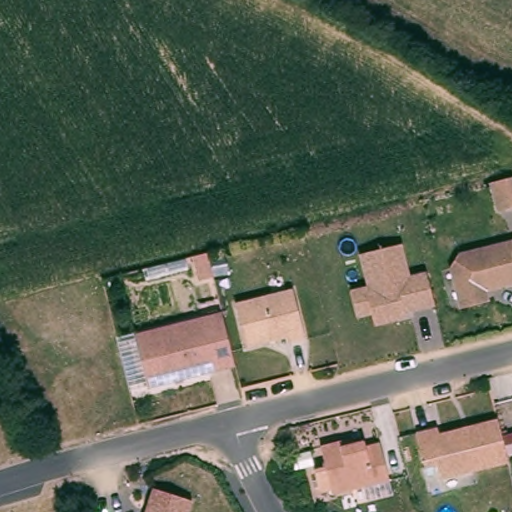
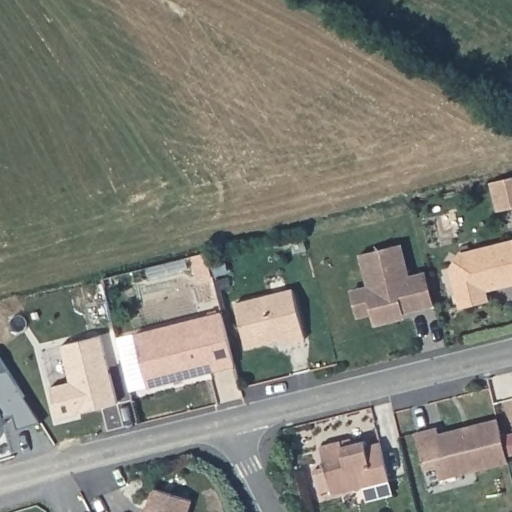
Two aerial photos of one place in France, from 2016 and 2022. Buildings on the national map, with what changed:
unchanged [(493,181),(496,181),(512,177),(512,208),(503,210),(496,211),(489,183),(493,181)]
unchanged [(369,314),(357,318),(349,289),(366,285),(358,252),(402,242),(409,274),(426,271),(435,305),(404,312),(405,316),(372,326),(369,314)]
unchanged [(454,287),(449,268),(456,255),(512,242),(512,284),(483,291),(485,300),(459,307),(454,287)]
unchanged [(212,277),(197,280),(191,257),(206,253),(212,277)]
unchanged [(304,339),(288,343),(286,337),(245,348),(234,304),(291,289),(304,339)]
unchanged [(221,313),(221,316),(233,364),(146,386),(133,335),(221,313)]
new [(59,418),(51,387),(71,382),(62,345),(101,335),(118,403),(101,407),(80,413),(59,418)]
new [(13,413),(4,416),(6,423),(0,425),(0,356),(39,421),(19,428),(13,413)]
unchanged [(512,453),(512,455),(444,472),(441,457),(429,460),(420,424),(441,419),(442,426),(502,411),(507,433),(512,453)]
unchanged [(344,438),(345,443),(367,438),(368,443),(383,440),(392,476),(335,490),(323,443),(344,438)]
unchanged [(190,500),(186,512),(143,512),(150,486),(190,500)]
new [(78,512),(94,507),(96,512),(78,512)]

